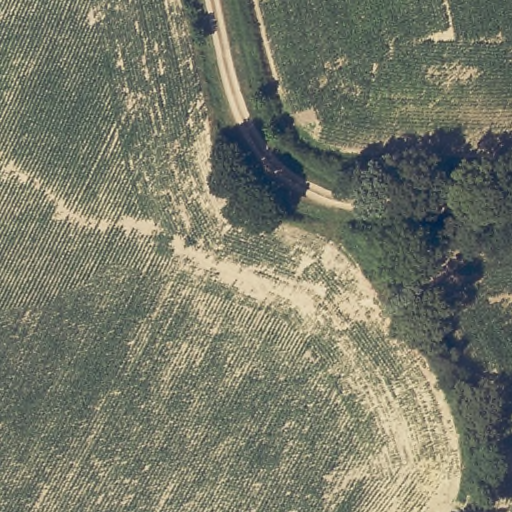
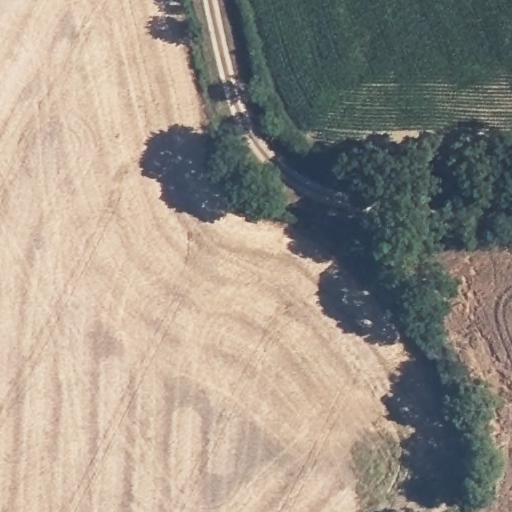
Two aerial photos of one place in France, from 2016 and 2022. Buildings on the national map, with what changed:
[]

